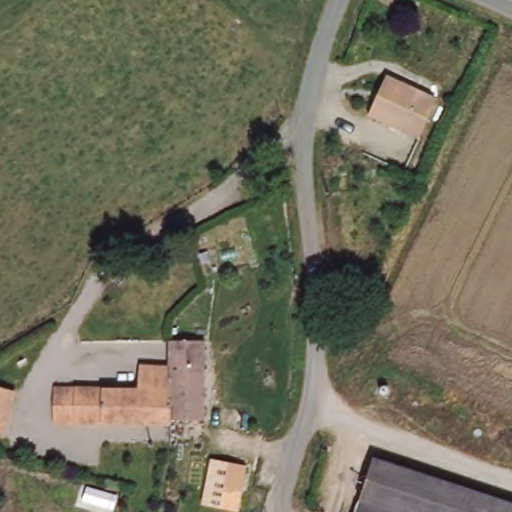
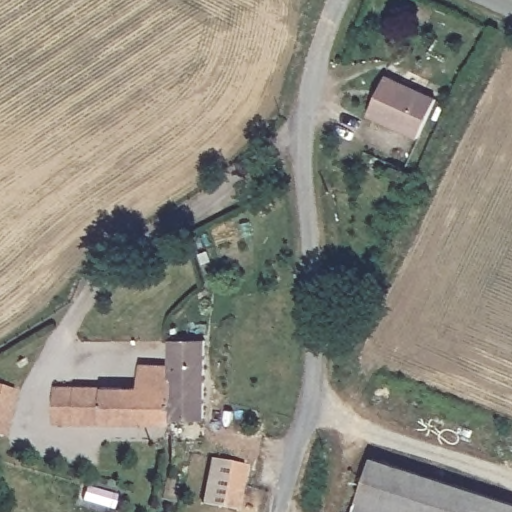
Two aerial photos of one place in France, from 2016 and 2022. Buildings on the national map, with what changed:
unchanged [(435,101),(417,139),(367,117),(386,79),(435,101)]
unchanged [(203,342),(205,374),(167,373),(165,364),(165,344),(203,342)]
unchanged [(167,373),(170,423),(171,427),(136,429),(137,389),(135,365),(165,364),(167,373)]
unchanged [(205,421),(170,423),(167,373),(205,374),(205,421)]
unchanged [(15,391),(4,437),(0,436),(0,387),(15,391)]
unchanged [(54,430),(52,392),(137,389),(136,429),(54,430)]
unchanged [(225,462),(251,468),(240,512),(231,512),(215,508),(225,462)]
unchanged [(512,512),(358,512),(372,462),(512,504),(512,512)]

